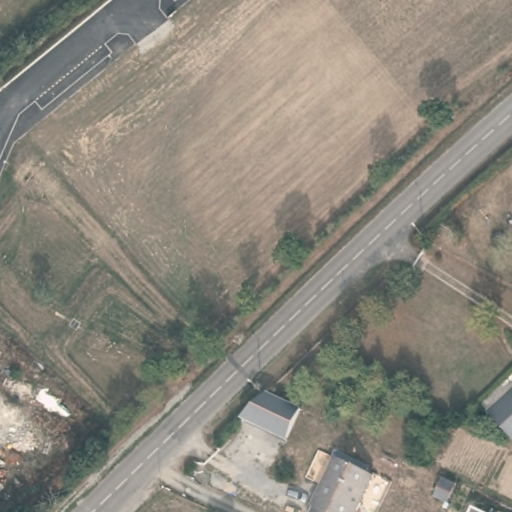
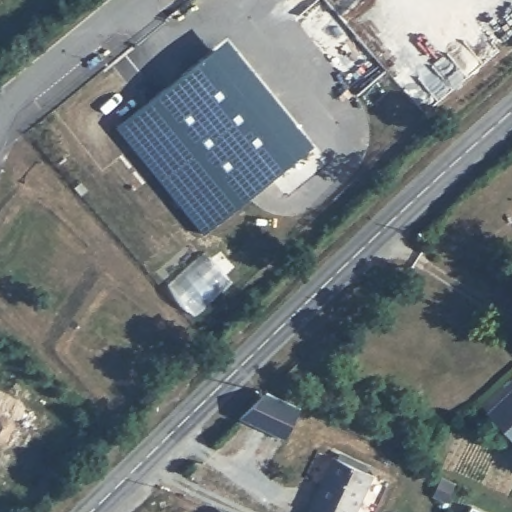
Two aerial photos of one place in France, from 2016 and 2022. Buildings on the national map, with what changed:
new [(315,144),(203,234),(117,127),(228,39),(315,144)]
unchanged [(239,418),(248,410),(266,392),(301,409),(286,440),(239,418)]
unchanged [(488,413),(512,392),(512,440),(488,413)]
unchanged [(310,512),(313,506),(311,505),(334,456),(372,474),(355,512),(310,512)]
unchanged [(468,512),(470,507),(480,512),(468,512)]

